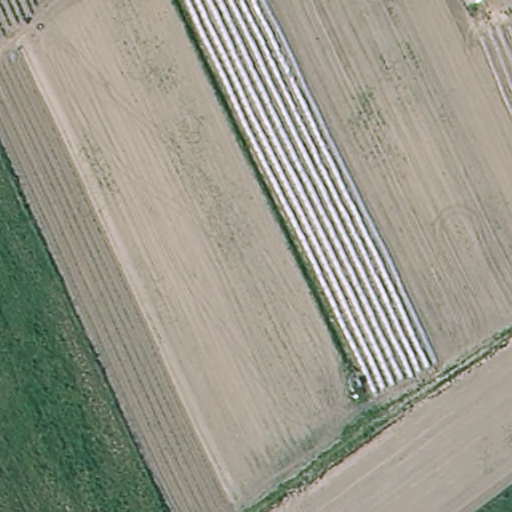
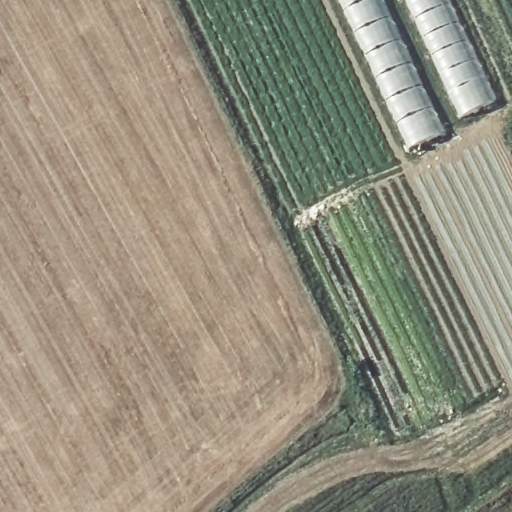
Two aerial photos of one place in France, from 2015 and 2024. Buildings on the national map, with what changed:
new [(339,0),(381,0),(443,134),(409,149),(339,0)]
new [(405,0),(452,0),(498,100),(459,117),(405,0)]

